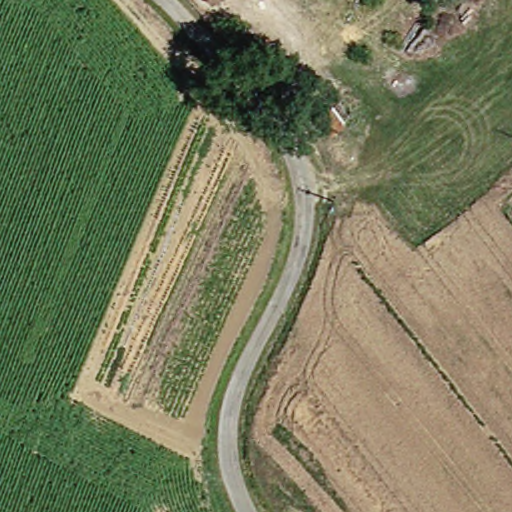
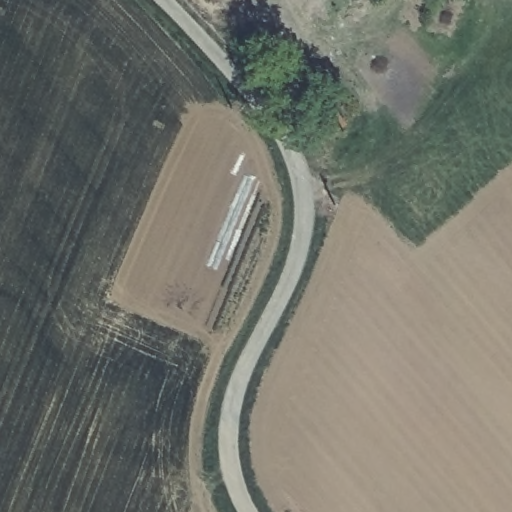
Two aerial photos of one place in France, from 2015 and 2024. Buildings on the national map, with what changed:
unchanged [(215,0),(219,0),(216,1),(215,0)]
unchanged [(332,111),(319,122),(307,106),(319,94),(332,111)]

